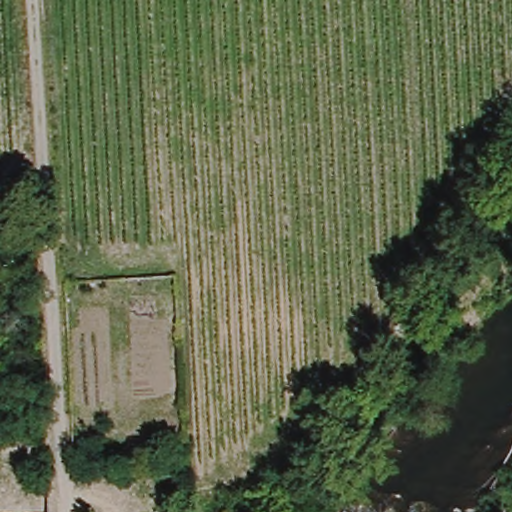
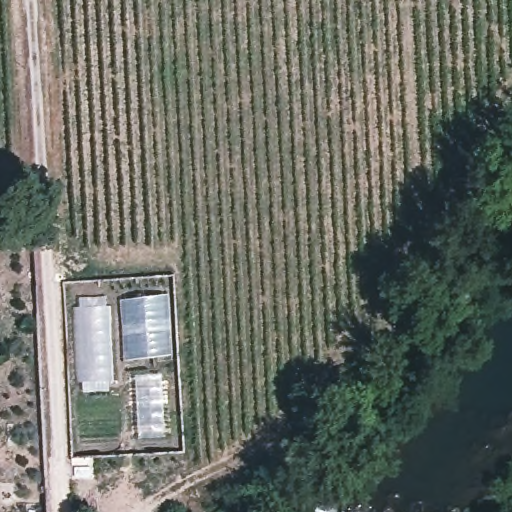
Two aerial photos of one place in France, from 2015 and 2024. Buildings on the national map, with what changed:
new [(169,292),(174,355),(124,360),(119,298),(169,292)]
new [(79,306),(79,297),(106,296),(107,304),(110,304),(113,391),(81,391),(80,381),(76,381),(72,306),(79,306)]
new [(163,373),(165,435),(137,437),(133,375),(163,373)]

